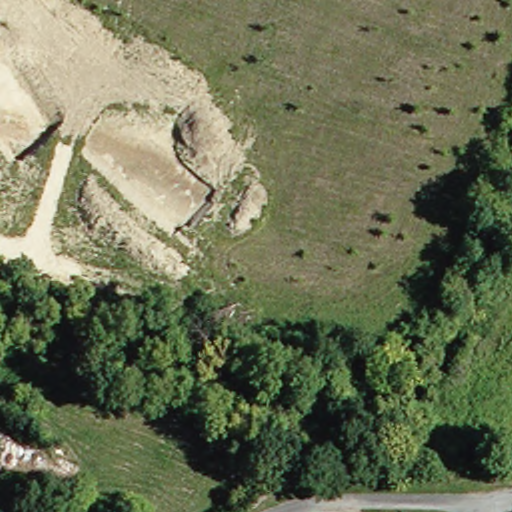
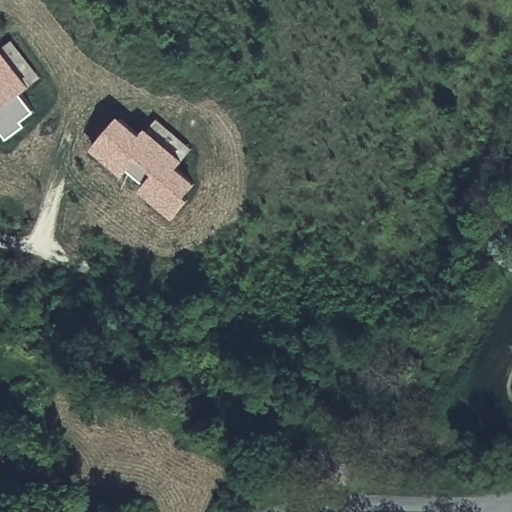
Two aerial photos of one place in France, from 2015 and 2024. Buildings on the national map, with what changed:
new [(7,139),(0,130),(0,49),(29,86),(20,92),(36,112),(22,121),(26,127),(7,139)]
new [(141,136),(147,131),(184,160),(178,168),(195,185),(185,196),(190,200),(173,220),(139,191),(142,183),(127,171),(122,176),(92,151),(120,119),(141,136)]

